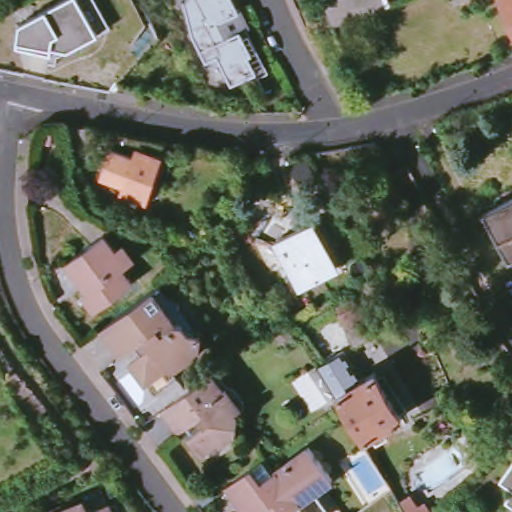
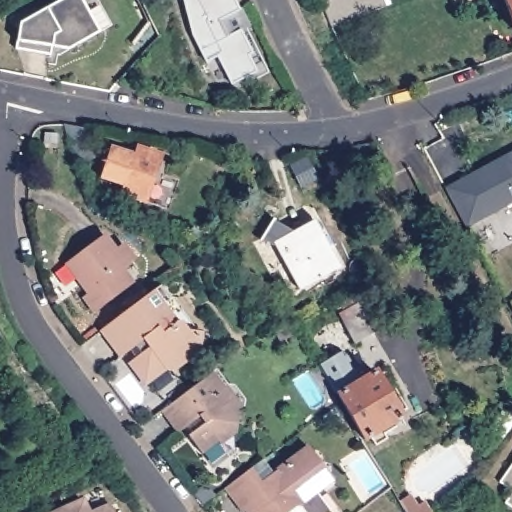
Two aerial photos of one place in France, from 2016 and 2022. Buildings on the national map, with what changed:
unchanged [(50,47),(49,55),(15,49),(19,24),(66,0),(96,0),(110,28),(98,34),(67,50),(50,47)]
unchanged [(240,7),(242,7),(248,26),(240,30),(247,53),(243,54),(250,72),(223,81),(213,51),(201,55),(193,26),(190,0),(238,0),(240,7)]
unchanged [(325,2),(329,0),(386,0),(389,6),(335,28),(325,2)]
unchanged [(504,0),(512,0),(512,18),(504,0)]
unchanged [(63,124),(85,128),(93,157),(87,159),(88,165),(82,167),(80,163),(74,163),(63,124)]
unchanged [(127,189),(130,180),(108,172),(117,145),(139,153),(142,145),(166,153),(151,197),(127,189)]
new [(466,227),(445,185),(512,152),(512,203),(466,227)]
demolished [(485,212),(512,199),(512,260),(511,260),(485,212)]
unchanged [(275,244),(310,225),(336,270),(301,290),(275,244)]
unchanged [(65,263),(103,233),(127,264),(121,268),(135,283),(95,312),(84,296),(89,292),(77,278),(65,263)]
unchanged [(165,285),(172,295),(177,296),(185,306),(185,309),(175,316),(178,322),(181,321),(186,322),(191,330),(205,333),(203,348),(177,368),(168,366),(155,379),(145,376),(133,361),(140,356),(134,349),(125,355),(106,329),(156,292),(165,285)]
unchanged [(510,302),(512,302),(512,305),(510,302)]
unchanged [(338,316),(357,307),(373,335),(355,346),(338,316)]
unchanged [(322,376),(316,366),(343,353),(348,361),(322,376)]
unchanged [(400,405),(396,426),(364,443),(336,391),(378,367),(400,405)]
unchanged [(215,373),(226,387),(230,386),(245,405),(241,409),(243,413),(240,431),(225,444),(223,442),(207,453),(193,438),(196,436),(190,428),(182,432),(165,411),(215,373)]
unchanged [(274,473),(309,448),(333,480),(316,492),(331,512),(304,512),(299,505),(290,512),(258,512),(253,505),(244,512),(225,488),(264,460),(274,473)]
unchanged [(499,489),(512,468),(512,497),(499,489)]
unchanged [(195,493),(203,487),(215,495),(203,504),(195,493)]
unchanged [(407,495),(415,507),(422,502),(428,512),(403,512),(397,501),(407,495)]
unchanged [(90,509),(101,505),(108,502),(112,509),(114,512),(54,512),(84,498),(90,509)]
unchanged [(512,501),(512,512),(510,512),(506,510),(512,501)]

